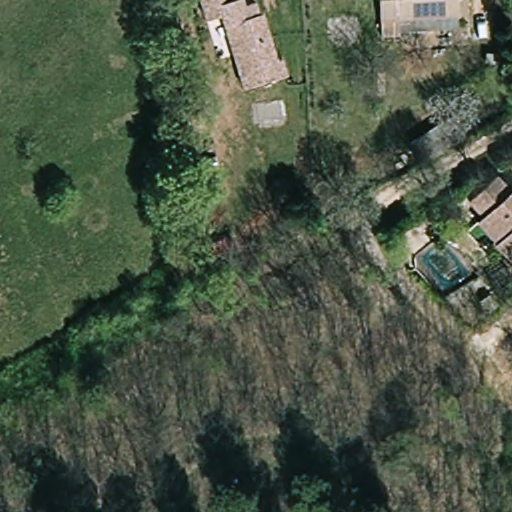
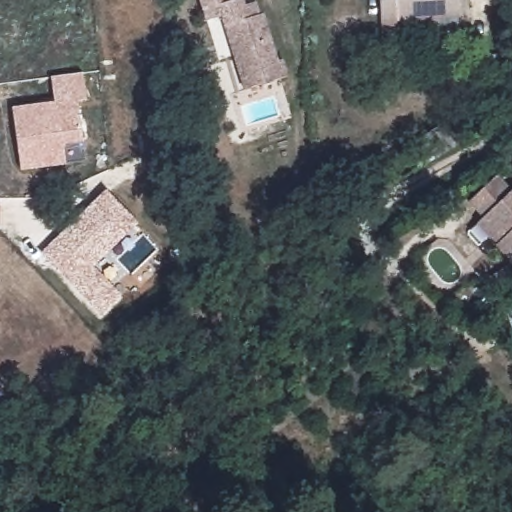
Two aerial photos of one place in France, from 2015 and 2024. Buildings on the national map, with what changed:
unchanged [(285,63),(290,81),(248,94),(225,20),(210,25),(202,0),(235,0),(237,4),(245,2),(247,9),(258,6),(262,19),(265,18),(280,65),(285,63)]
unchanged [(401,33),(401,37),(381,37),(379,0),(460,0),(460,17),(460,30),(401,33)]
unchanged [(487,53),(501,54),(500,66),(485,64),(487,53)]
new [(82,72),(85,98),(77,100),(82,142),(63,145),(66,164),(20,171),(12,107),(55,101),(51,76),(82,72)]
unchanged [(470,141),(466,144),(427,167),(413,145),(457,119),(470,141)]
unchanged [(480,217),(465,203),(492,174),(507,187),(512,181),(512,260),(495,244),(498,241),(476,220),(480,217)]
new [(138,224),(93,267),(122,295),(102,316),(41,252),(105,188),(138,224)]

